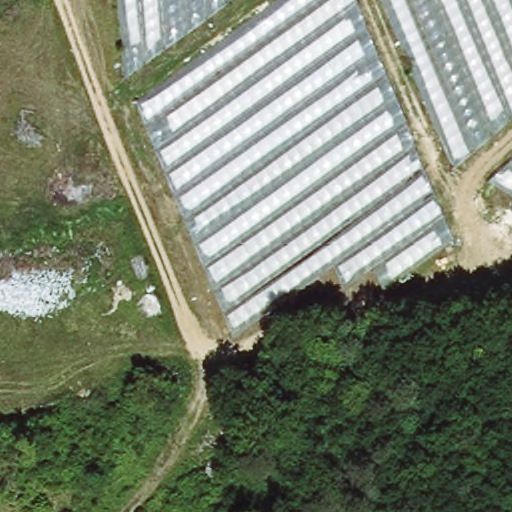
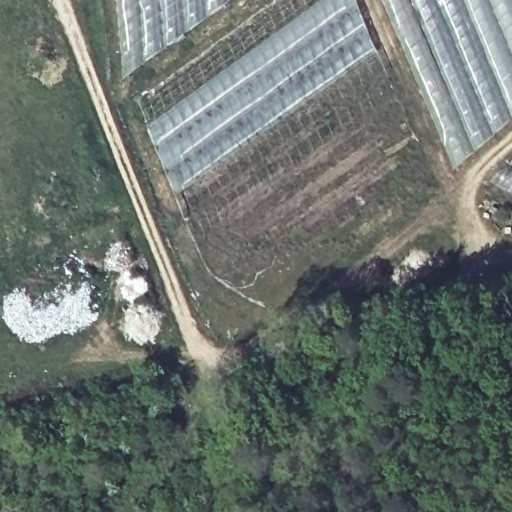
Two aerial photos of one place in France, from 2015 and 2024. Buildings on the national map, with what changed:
unchanged [(231,0),(125,74),(118,0),(231,0)]
demolished [(456,240),(384,287),(375,263),(343,285),(334,262),(233,333),(137,97),(274,0),(355,0),(387,79),(456,240)]
new [(317,0),(355,0),(376,48),(175,192),(143,122),(194,89),(317,0)]
unchanged [(512,0),(512,120),(458,168),(386,0),(512,0)]
unchanged [(489,182),(512,162),(512,197),(489,182)]

